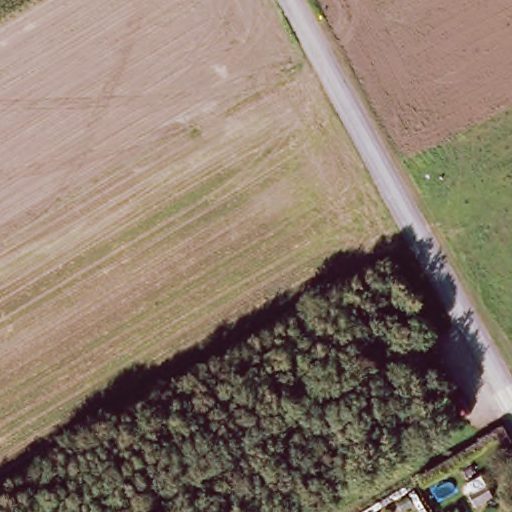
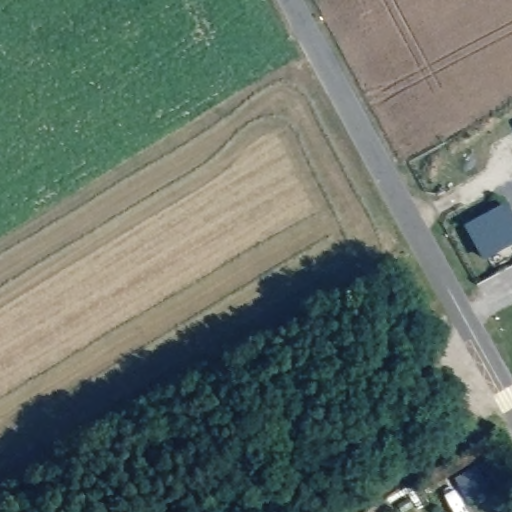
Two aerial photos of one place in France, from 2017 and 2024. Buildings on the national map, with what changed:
new [(485,257),(471,232),(468,226),(483,218),(506,205),(512,216),(512,242),(508,244),(485,257)]
unchanged [(480,479),(487,490),(469,500),(463,489),(480,479)]

